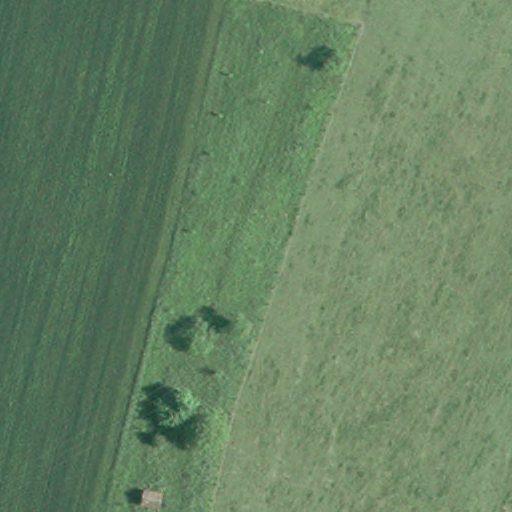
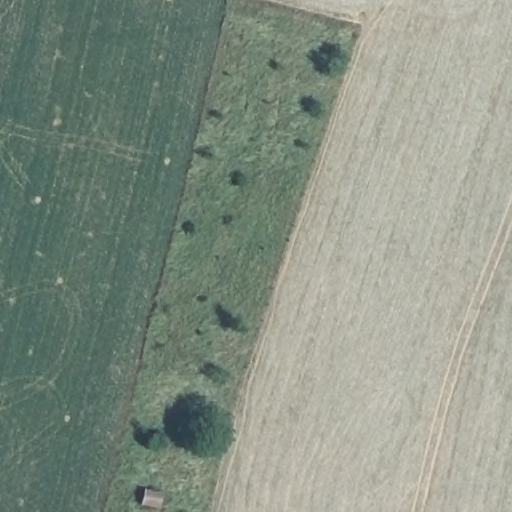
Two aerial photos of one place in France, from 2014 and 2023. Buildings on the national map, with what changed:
unchanged [(139,503),(142,490),(161,495),(158,508),(139,503)]

